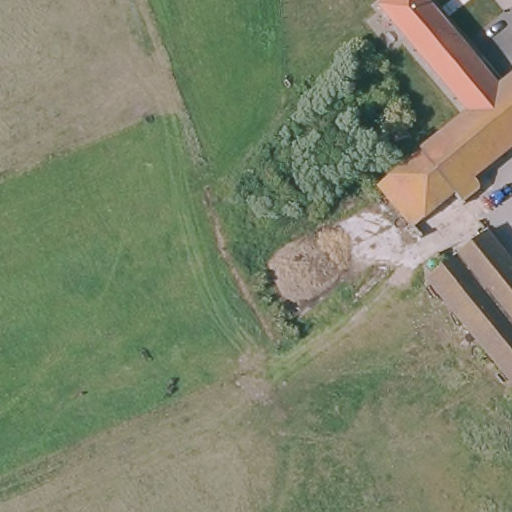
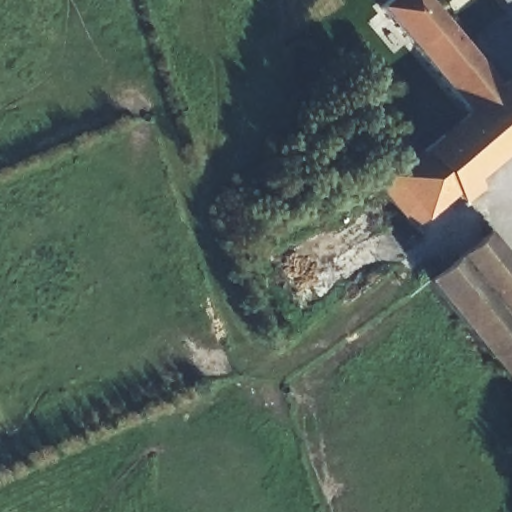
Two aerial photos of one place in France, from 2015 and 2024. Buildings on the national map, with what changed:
unchanged [(373,183),(394,166),(465,108),(381,0),(431,0),(497,82),(512,70),(512,137),(471,170),(480,181),(451,203),(443,194),(406,225),(385,198),(373,183)]
unchanged [(512,261),(512,381),(487,350),(486,348),(425,273),(427,272),(438,260),(432,254),(477,218),(512,261)]

